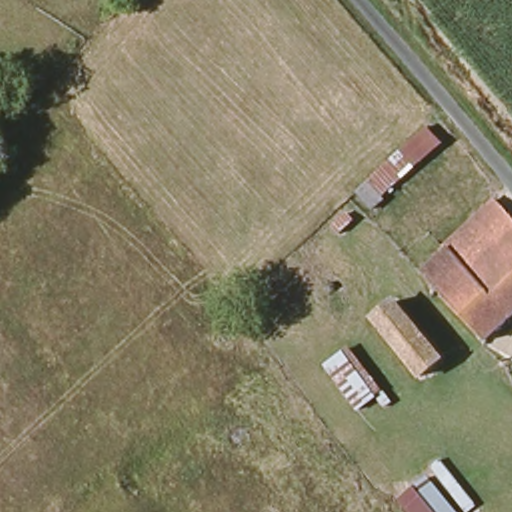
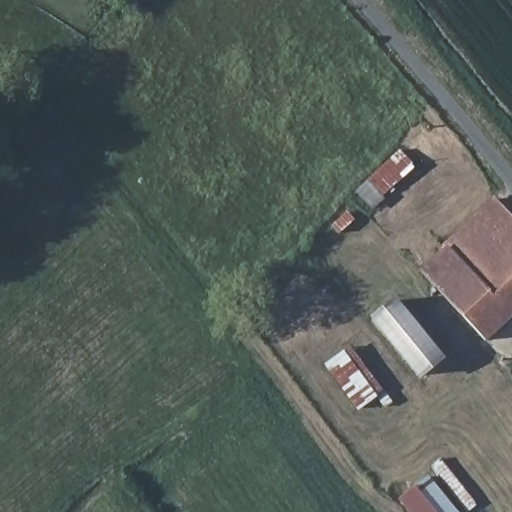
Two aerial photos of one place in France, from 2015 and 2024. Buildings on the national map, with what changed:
unchanged [(438,141),(379,193),(382,197),(370,206),(364,198),(354,185),(422,123),(435,137),(438,141)]
unchanged [(512,224),(512,321),(487,344),(425,277),(448,254),(446,251),(495,205),(512,224)]
unchanged [(375,319),(397,302),(444,360),(422,380),(375,319)]
unchanged [(348,353),(380,398),(356,415),(324,370),(348,353)]
unchanged [(470,512),(455,512),(428,477),(437,470),(470,512)]
unchanged [(445,512),(404,512),(400,507),(425,487),(445,512)]

